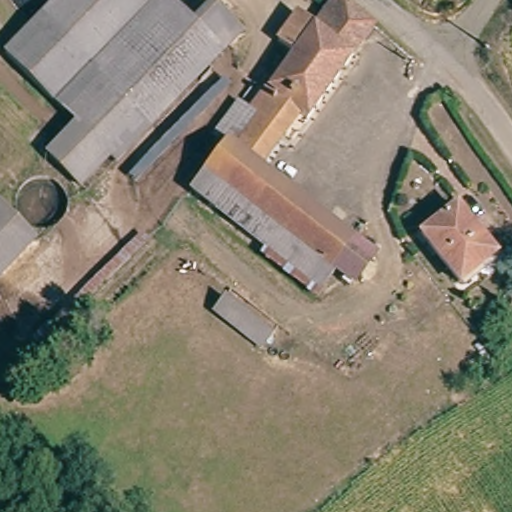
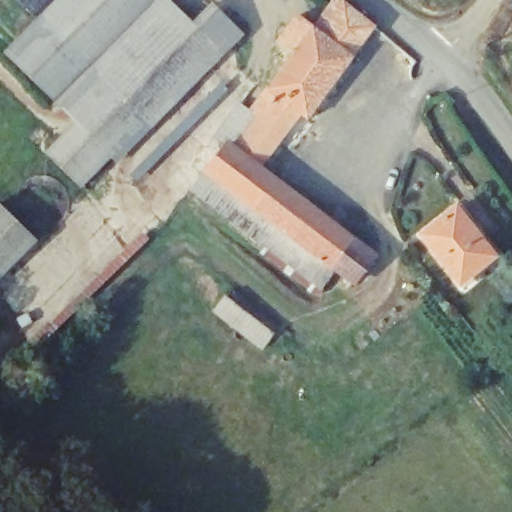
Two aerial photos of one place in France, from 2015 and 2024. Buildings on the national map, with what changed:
unchanged [(167,18),(207,53),(121,156),(115,155),(87,185),(52,157),(80,124),(34,83),(4,57),(52,0),(176,0),(179,3),(167,18)]
unchanged [(195,0),(219,0),(238,16),(207,53),(167,18),(179,3),(187,9),(195,0)]
unchanged [(331,0),(369,25),(348,56),(306,28),(326,0),(331,0)]
unchanged [(255,168),(358,233),(340,263),(206,175),(223,146),(213,139),(235,99),(252,109),(288,56),(267,43),(285,14),(306,28),(348,56),(307,118),(292,109),(255,168)]
unchanged [(326,287),(193,197),(206,175),(340,263),(326,287)]
unchanged [(0,274),(0,207),(36,237),(0,274)]
unchanged [(460,207),(492,253),(475,264),(479,272),(459,285),(423,233),(460,207)]
unchanged [(223,298),(269,331),(261,346),(210,313),(223,298)]
unchanged [(70,496),(95,473),(132,512),(87,512),(70,496)]

